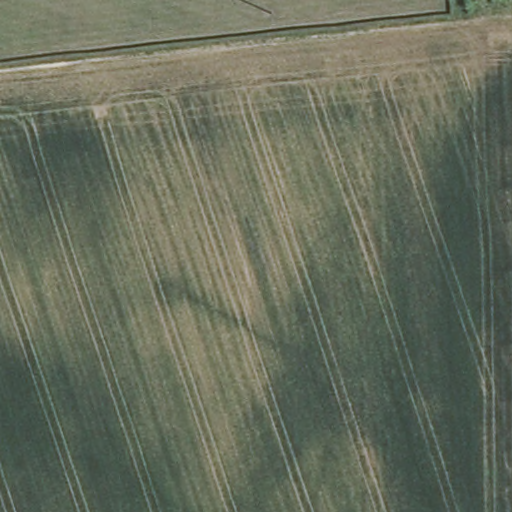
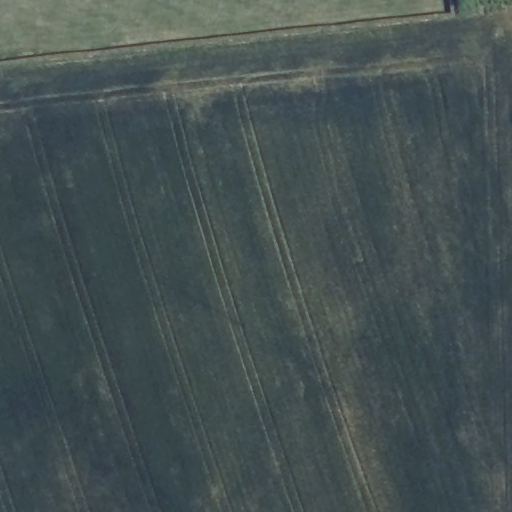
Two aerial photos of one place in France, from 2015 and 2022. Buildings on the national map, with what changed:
[]

